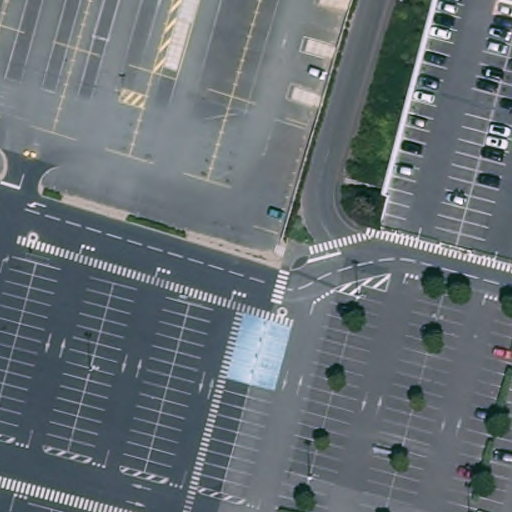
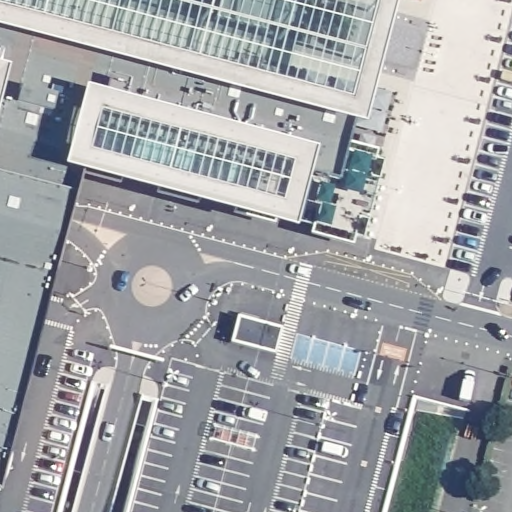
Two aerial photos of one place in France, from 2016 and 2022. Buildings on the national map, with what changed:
new [(357,131),(349,130),(344,145),(374,152),(371,161),(380,164),(362,235),(361,237),(360,240),(350,238),(348,246),(308,236),(311,226),(291,219),(274,214),(271,225),(230,214),(235,203),(196,194),(194,206),(154,195),(159,183),(119,172),(116,183),(76,174),(69,201),(0,464),(0,0),(391,0),(359,124),(357,131)]
new [(239,314),(284,328),(276,354),(231,341),(239,314)]

